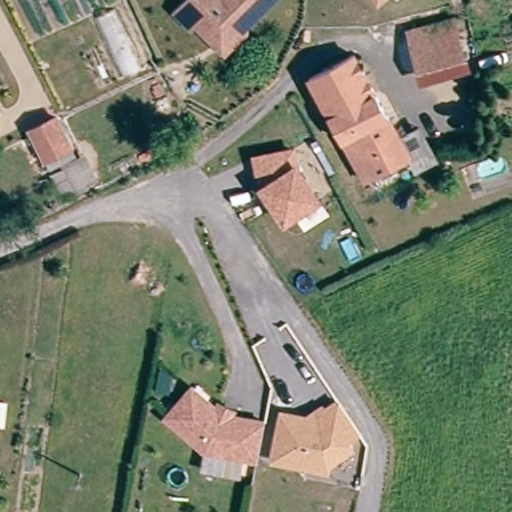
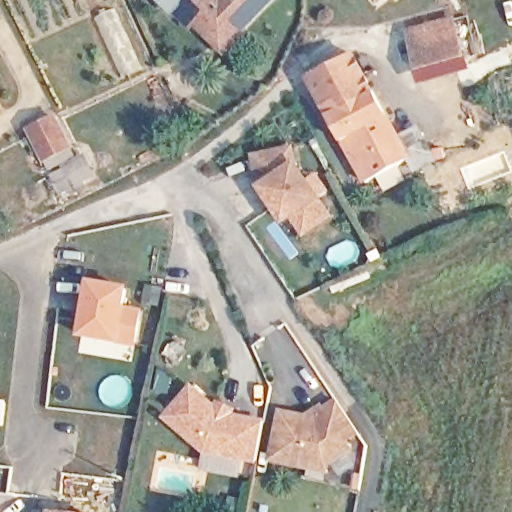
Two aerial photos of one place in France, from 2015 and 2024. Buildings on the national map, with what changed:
new [(157,0),(198,0),(177,21),(157,0)]
unchanged [(195,31),(190,35),(177,21),(198,0),(219,0),(222,3),(232,4),(232,0),(282,0),(243,38),(222,59),(214,50),(195,31)]
unchanged [(375,0),(380,0),(376,2),(375,0)]
unchanged [(464,70),(421,83),(409,33),(450,21),(464,70)]
unchanged [(431,155),(411,165),(405,154),(360,176),(307,77),(350,55),(394,134),(414,123),(431,155)]
unchanged [(74,155),(48,170),(29,132),(57,117),(74,155)]
unchanged [(298,162),(323,201),(284,227),(257,188),(252,155),(296,146),(298,162)]
unchanged [(96,177),(87,182),(87,187),(76,194),(66,170),(89,160),(96,177)]
new [(85,306),(89,307),(90,300),(86,299),(89,285),(124,292),(120,312),(137,315),(131,347),(78,336),(85,306)]
unchanged [(212,400),(224,406),(223,412),(257,419),(250,453),(249,457),(197,447),(158,413),(184,383),(208,405),(212,400)]
unchanged [(313,460),(311,469),(274,461),(284,414),(315,420),(342,403),(349,415),(362,435),(348,443),(353,451),(332,465),(313,460)]

